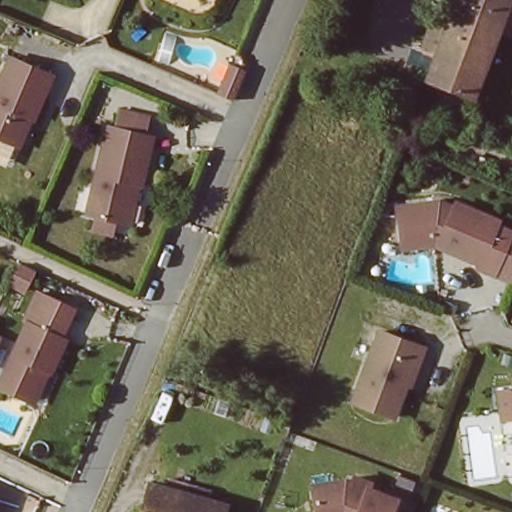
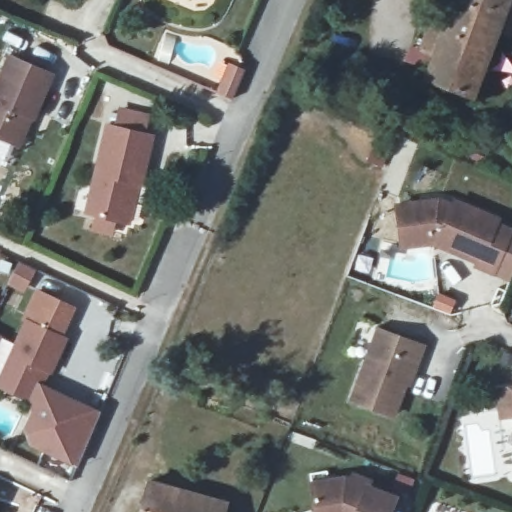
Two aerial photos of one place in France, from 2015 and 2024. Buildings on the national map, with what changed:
unchanged [(486,28),(450,15),(456,0),(509,0),(496,32),(492,31),(486,28)]
unchanged [(486,28),(492,31),(496,32),(471,97),(426,80),(450,15),(486,28)]
unchanged [(0,136),(0,75),(9,55),(50,73),(31,116),(16,143),(13,141),(0,136)]
unchanged [(120,220),(83,212),(103,125),(108,126),(112,109),(142,116),(138,133),(146,135),(136,182),(126,222),(120,220)]
unchanged [(399,243),(395,211),(394,202),(430,197),(436,197),(450,203),(452,198),(495,215),(493,220),(508,226),(491,269),(474,262),(476,257),(437,241),(431,239),(399,243)]
unchanged [(60,335),(64,337),(50,369),(43,367),(30,398),(0,385),(0,380),(26,320),(23,319),(35,290),(73,306),(60,335)]
unchanged [(405,386),(393,417),(352,402),(377,332),(423,348),(417,364),(409,387),(405,386)]
new [(29,446),(22,430),(31,411),(28,403),(30,398),(36,382),(101,412),(76,467),(29,446)]
unchanged [(511,389),(512,389),(512,401),(511,389)]
unchanged [(313,482),(346,476),(352,478),(354,472),(371,478),(369,484),(396,494),(390,512),(317,512),(313,482)]
unchanged [(224,507),(223,512),(140,512),(150,485),(224,507)]

